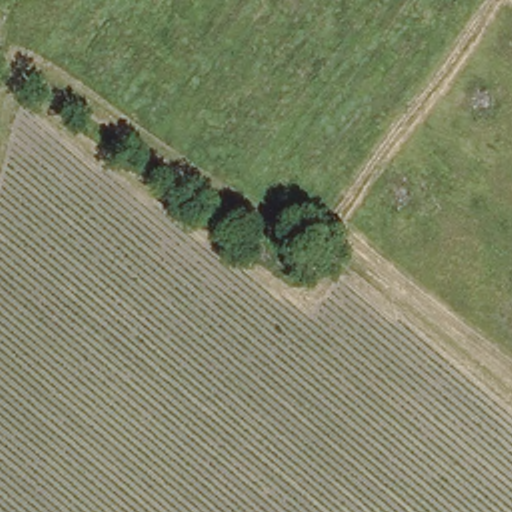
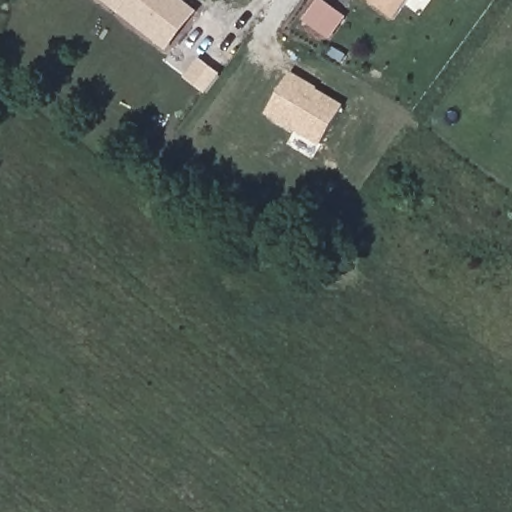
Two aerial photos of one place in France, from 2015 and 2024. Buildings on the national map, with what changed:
new [(183,0),(198,12),(167,52),(102,0),(183,0)]
new [(368,0),(406,0),(392,19),(368,0)]
new [(265,115),(290,73),(344,105),(319,147),(265,115)]

